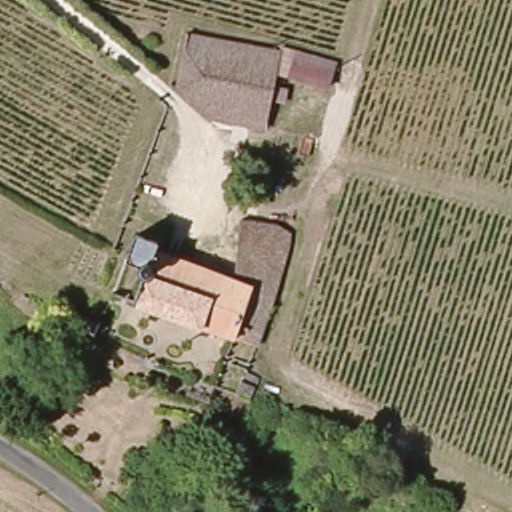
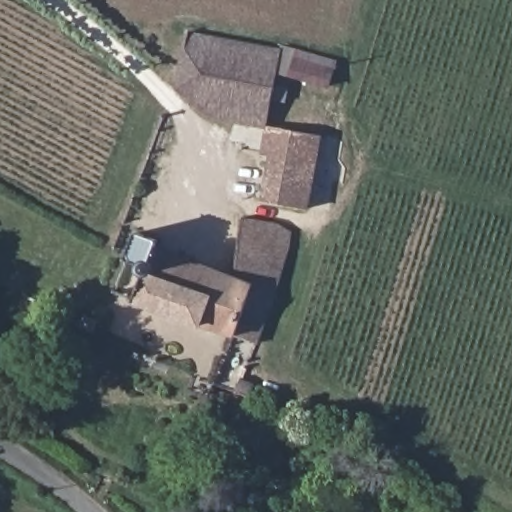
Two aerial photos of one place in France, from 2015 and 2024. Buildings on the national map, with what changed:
unchanged [(185,31),(278,48),(272,128),(265,127),(226,121),(175,80),(185,31)]
unchanged [(293,47),(338,57),(333,85),(288,76),(293,47)]
new [(265,127),(272,128),(323,137),(310,210),(262,201),(272,159),(260,156),(265,127)]
unchanged [(293,247),(260,348),(141,301),(151,262),(131,252),(139,232),(160,240),(159,247),(235,273),(244,221),(283,231),(293,247)]
unchanged [(80,317),(85,306),(94,310),(88,322),(80,317)]
unchanged [(243,395),(252,368),(265,373),(257,401),(243,395)]

